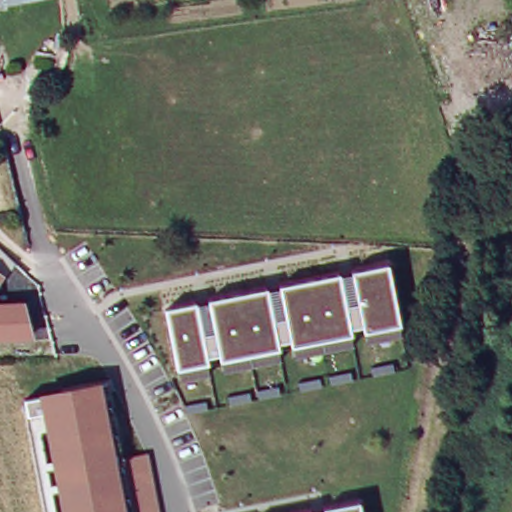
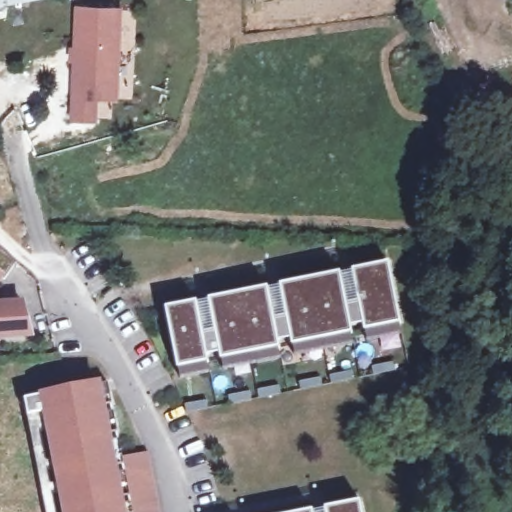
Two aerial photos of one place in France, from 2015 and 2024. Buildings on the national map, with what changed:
unchanged [(0,9),(0,0),(36,0),(0,9)]
new [(92,97),(92,119),(72,118),(77,9),(115,11),(112,87),(112,98),(92,97)]
unchanged [(402,326),(175,371),(165,310),(387,264),(402,326)]
unchanged [(0,283),(0,270),(6,274),(0,283)]
unchanged [(36,339),(0,341),(0,303),(27,301),(36,339)]
unchanged [(97,383),(109,383),(124,458),(149,454),(161,512),(50,512),(32,420),(24,420),(22,401),(39,396),(97,383)]
unchanged [(312,512),(359,502),(361,512),(312,512)]

